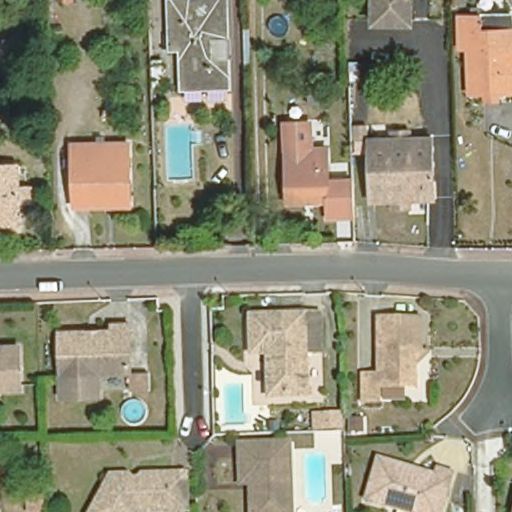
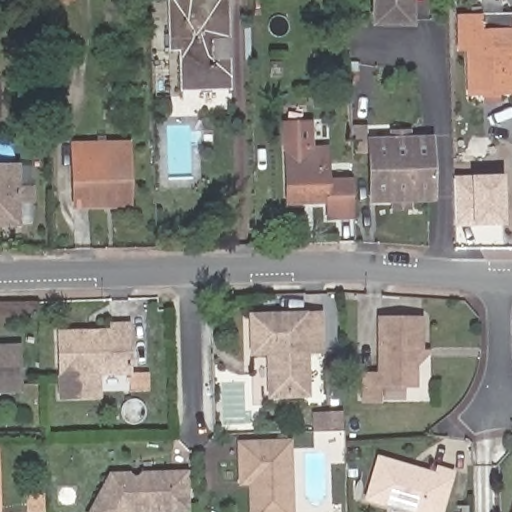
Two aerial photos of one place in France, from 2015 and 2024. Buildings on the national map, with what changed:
unchanged [(61,17),(60,0),(70,0),(71,17),(61,17)]
unchanged [(166,0),(181,0),(227,0),(227,27),(209,28),(211,49),(229,48),(230,85),(180,87),(179,51),(167,51),(166,0)]
unchanged [(412,15),(367,16),(367,0),(411,0),(412,15)]
unchanged [(482,32),(512,32),(512,95),(469,95),(468,50),(451,50),(451,29),(450,6),(458,6),(458,17),(482,17),(482,32)]
unchanged [(0,120),(0,96),(3,96),(4,120),(0,120)]
unchanged [(372,202),(371,143),(432,141),(433,202),(372,202)]
unchanged [(283,200),(283,166),(282,147),(323,146),(324,165),(325,199),(283,200)]
unchanged [(64,199),(65,148),(87,148),(127,149),(127,156),(127,199),(84,199),(64,199)]
unchanged [(7,191),(39,191),(39,203),(24,203),(23,226),(0,226),(0,172),(6,171),(7,191)]
new [(472,225),(453,226),(452,176),(471,175),(504,175),(505,224),(472,225)]
unchanged [(250,347),(248,308),(318,306),(320,344),(305,345),(307,388),(268,389),(267,364),(267,346),(250,347)]
unchanged [(378,381),(379,396),(364,396),(363,368),(378,368),(376,312),(418,310),(420,343),(427,342),(415,356),(416,379),(378,381)]
unchanged [(147,388),(124,390),(122,372),(96,373),(97,395),(58,396),(57,374),(56,331),(109,330),(109,324),(126,323),(127,369),(127,372),(147,370),(147,388)]
unchanged [(0,386),(0,343),(17,342),(17,385),(0,386)]
unchanged [(312,414),(318,413),(340,413),(341,428),(318,428),(312,428),(312,414)]
unchanged [(243,440),(293,439),(295,512),(255,512),(255,486),(254,480),(244,480),(243,440)]
unchanged [(402,461),(401,465),(431,474),(435,464),(450,469),(437,512),(417,512),(362,495),(376,453),(402,461)]
unchanged [(126,471),(131,475),(137,475),(141,470),(184,469),(185,507),(131,509),(129,512),(87,512),(110,471),(126,471)]
unchanged [(511,512),(511,511),(512,508),(512,512),(511,512)]

